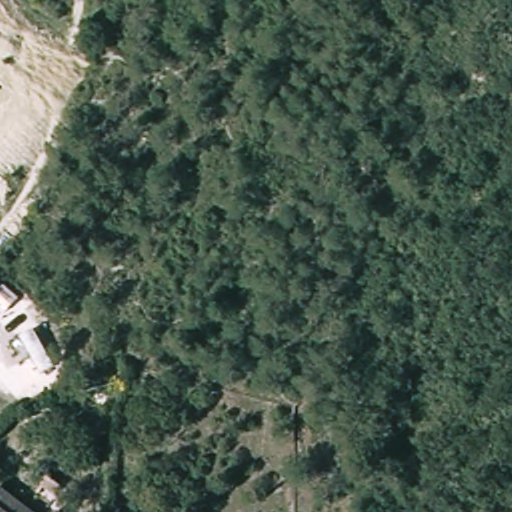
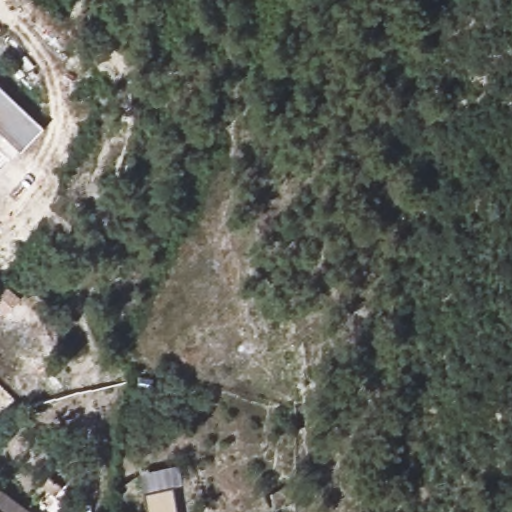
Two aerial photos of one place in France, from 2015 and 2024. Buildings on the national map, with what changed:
new [(17,152),(0,135),(0,92),(39,131),(17,152)]
unchanged [(4,312),(0,309),(0,288),(3,283),(18,297),(4,312)]
new [(176,463),(180,481),(170,482),(171,486),(176,512),(146,512),(142,491),(138,470),(176,463)]
unchanged [(33,512),(0,512),(0,485),(1,484),(33,512)]
unchanged [(61,512),(59,512),(60,511),(61,512)]

